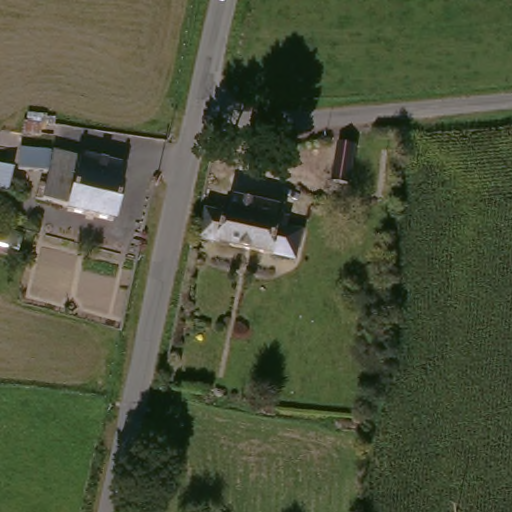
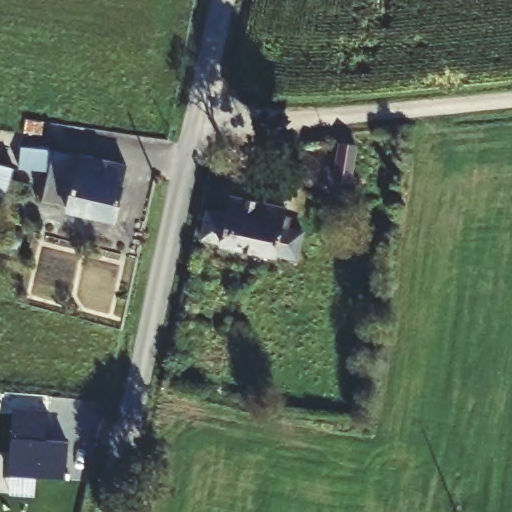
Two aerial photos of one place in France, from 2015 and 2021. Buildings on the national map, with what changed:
unchanged [(280,170),(279,163),(268,165),(266,151),(277,150),(312,145),(320,145),(321,155),(313,155),(315,165),(280,170)]
unchanged [(4,150),(0,167),(0,150),(4,150)]
unchanged [(321,205),(337,151),(349,155),(333,209),(321,205)]
unchanged [(93,158),(137,168),(125,227),(78,217),(80,205),(55,199),(60,180),(31,174),(35,155),(64,161),(91,167),(93,158)]
unchanged [(0,188),(0,167),(22,172),(19,192),(0,188)]
unchanged [(190,248),(199,208),(226,213),(229,199),(276,209),(273,224),(266,264),(190,248)]
unchanged [(266,264),(273,224),(297,229),(291,269),(266,264)]
new [(49,410),(46,440),(69,442),(65,480),(7,476),(13,407),(49,410)]

